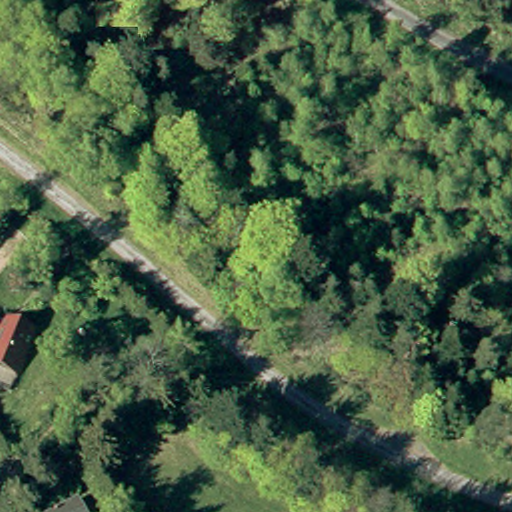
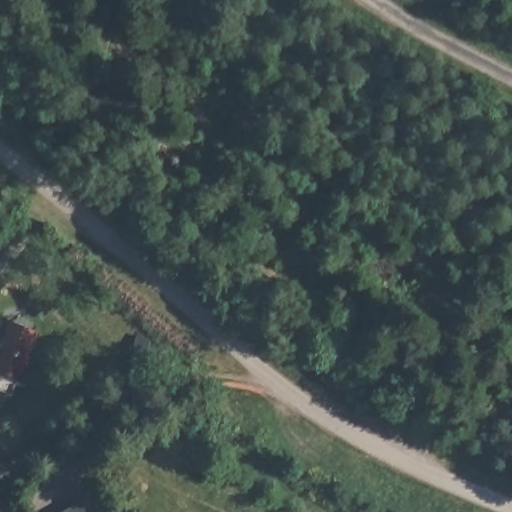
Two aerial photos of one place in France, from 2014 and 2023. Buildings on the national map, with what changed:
unchanged [(0,362),(0,335),(8,315),(36,326),(21,370),(0,362)]
unchanged [(500,451),(505,441),(512,445),(512,458),(500,451)]
unchanged [(68,512),(70,510),(71,512),(68,512)]

